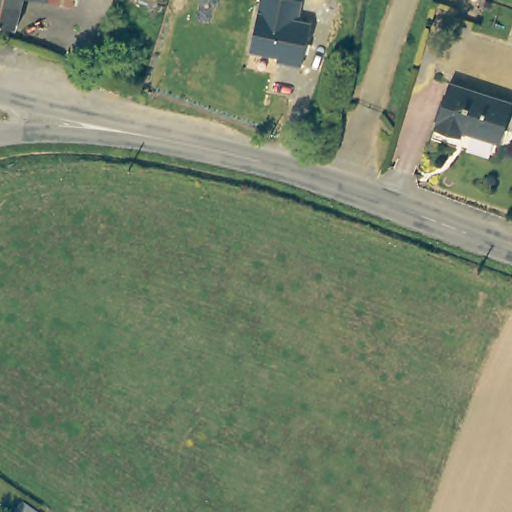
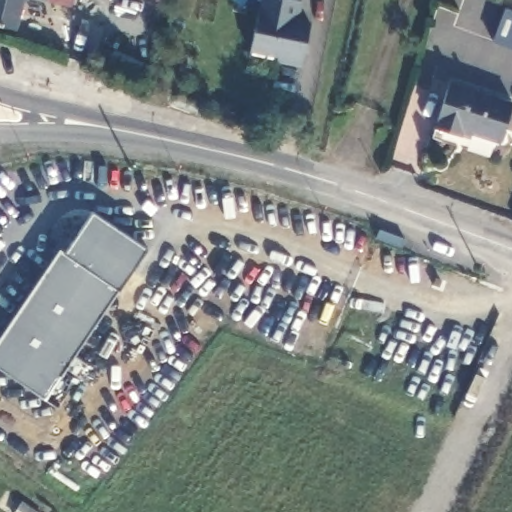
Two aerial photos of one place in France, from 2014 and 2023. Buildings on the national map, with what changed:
unchanged [(0,29),(0,0),(22,0),(14,32),(0,29)]
unchanged [(32,0),(69,0),(66,9),(32,0)]
unchanged [(169,0),(167,9),(138,0),(169,0)]
unchanged [(275,55),(250,52),(259,0),(300,0),(297,19),(309,21),(300,65),(275,62),(275,55)]
new [(505,8),(512,10),(512,50),(493,44),(505,8)]
unchanged [(497,142),(464,131),(461,137),(435,128),(450,85),(510,106),(497,142)]
new [(149,249),(45,399),(0,367),(0,337),(60,249),(66,252),(93,211),(149,249)]

